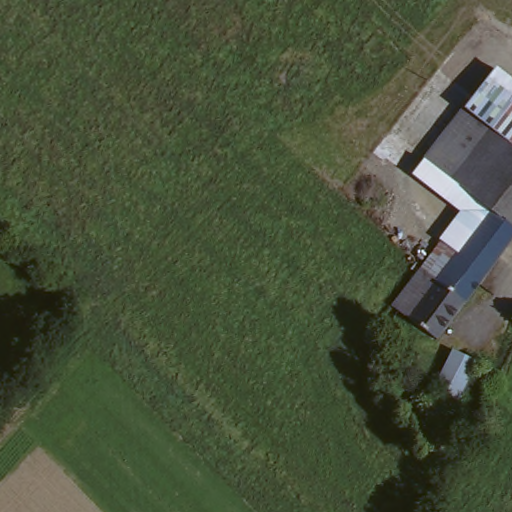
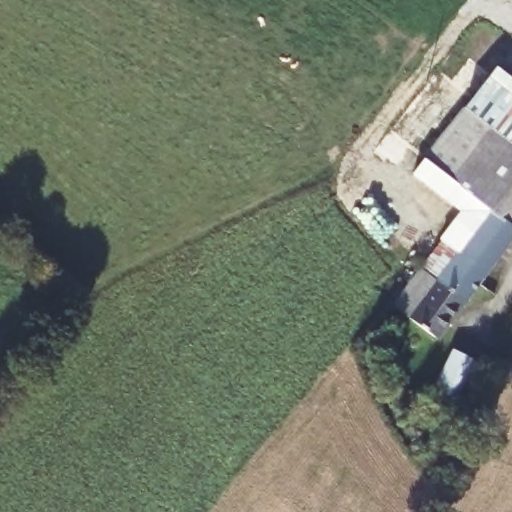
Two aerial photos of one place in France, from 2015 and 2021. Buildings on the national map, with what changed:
unchanged [(477,91),(512,117),(512,224),(487,206),(425,161),(477,91)]
unchanged [(487,206),(512,224),(512,239),(488,271),(456,248),(487,206)]
unchanged [(456,248),(488,271),(463,303),(432,279),(456,248)]
unchanged [(416,267),(432,279),(463,303),(438,338),(409,315),(408,315),(389,300),(416,267)]
unchanged [(445,372),(454,355),(475,366),(472,371),(474,371),(461,399),(437,387),(445,372)]

